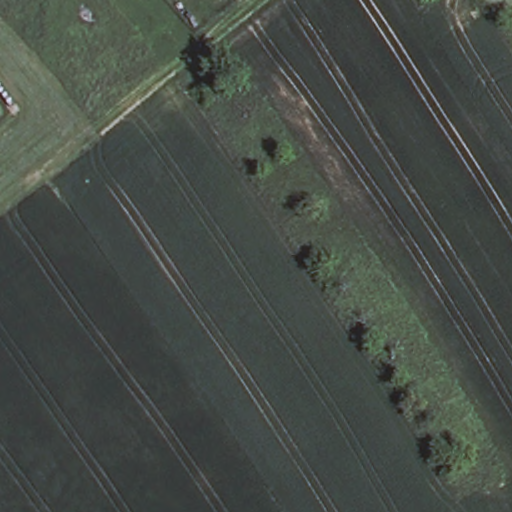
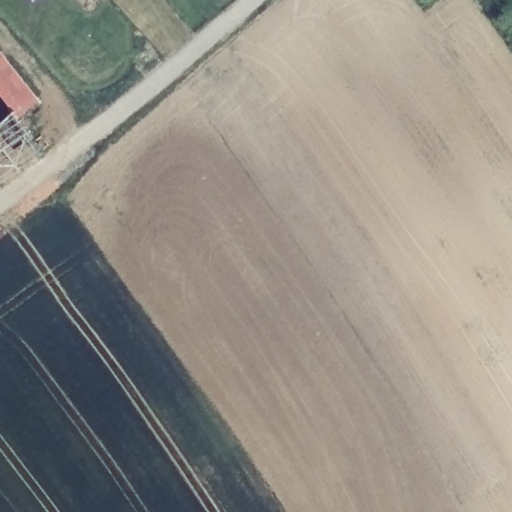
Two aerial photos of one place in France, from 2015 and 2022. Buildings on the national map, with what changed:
new [(41,100),(18,117),(0,94),(0,46),(41,100)]

